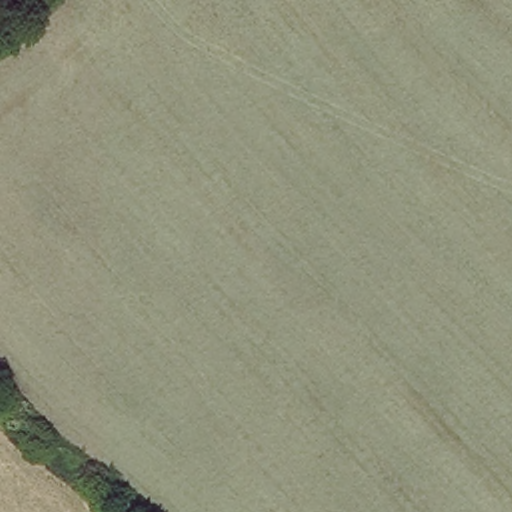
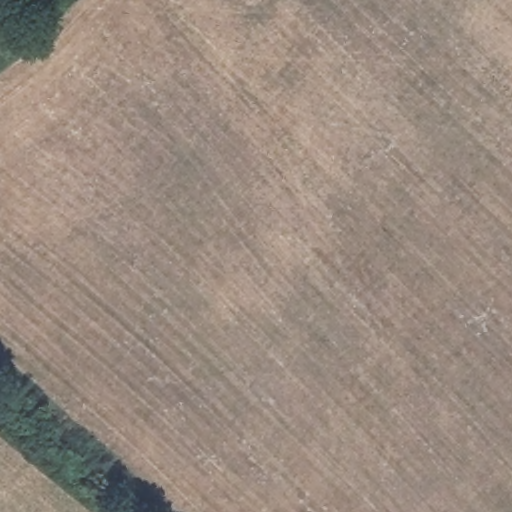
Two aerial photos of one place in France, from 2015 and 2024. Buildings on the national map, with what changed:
[]

